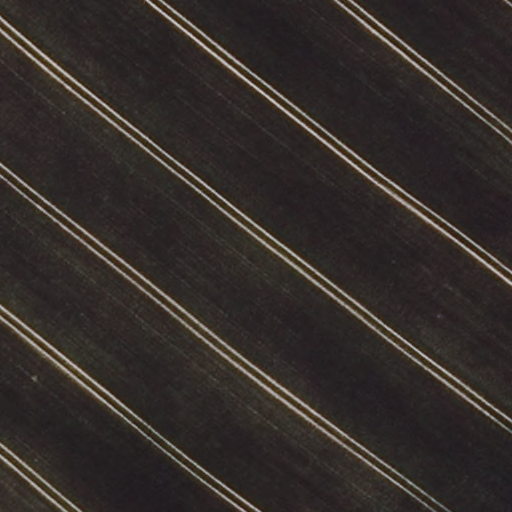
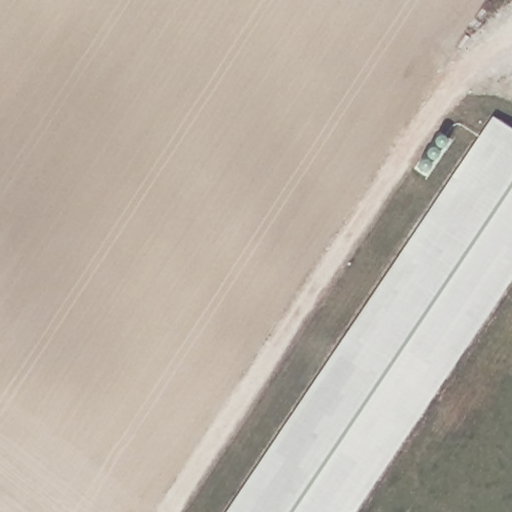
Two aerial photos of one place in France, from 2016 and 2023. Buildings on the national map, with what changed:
new [(492,117),(512,130),(512,282),(357,512),(226,512),(492,117)]

